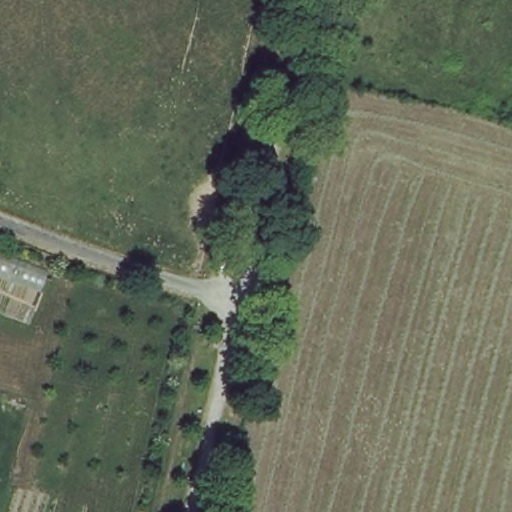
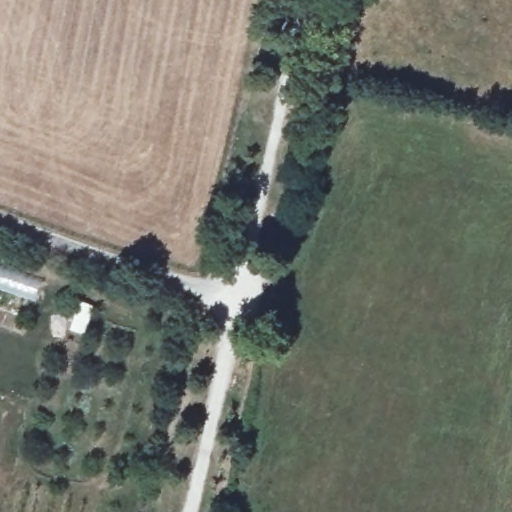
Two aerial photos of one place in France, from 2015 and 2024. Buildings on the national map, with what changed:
[]

